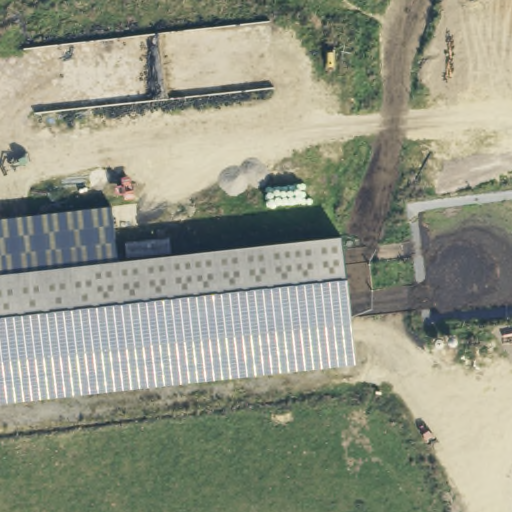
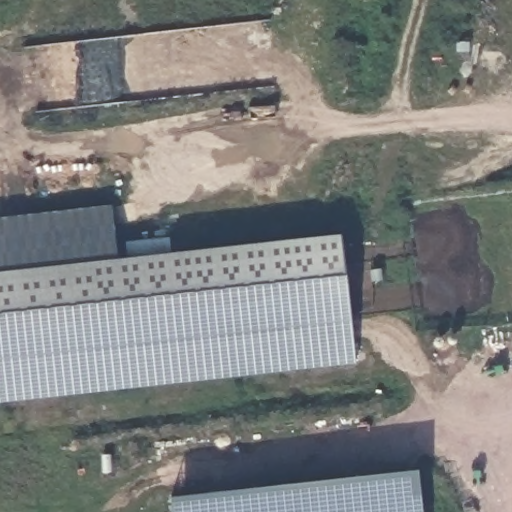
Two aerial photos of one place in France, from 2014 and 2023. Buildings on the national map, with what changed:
unchanged [(357,363),(0,403),(0,217),(111,204),(117,258),(341,233),(357,363)]
new [(418,468),(423,512),(171,512),(170,496),(418,468)]

